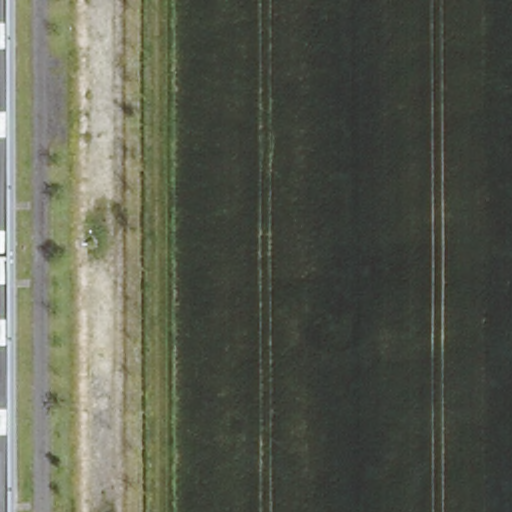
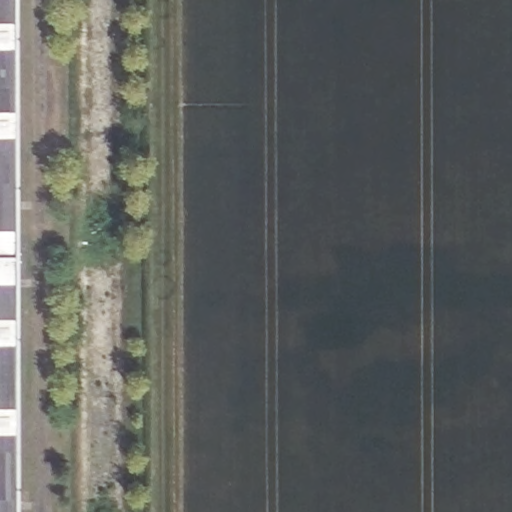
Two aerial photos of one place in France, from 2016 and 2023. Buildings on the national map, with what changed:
unchanged [(10,512),(0,512),(0,0),(9,0),(10,512)]

